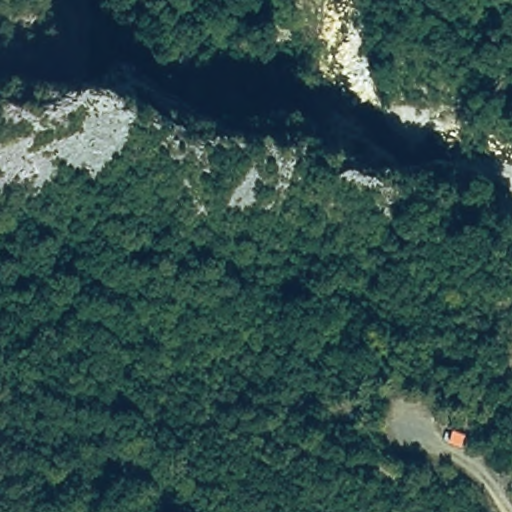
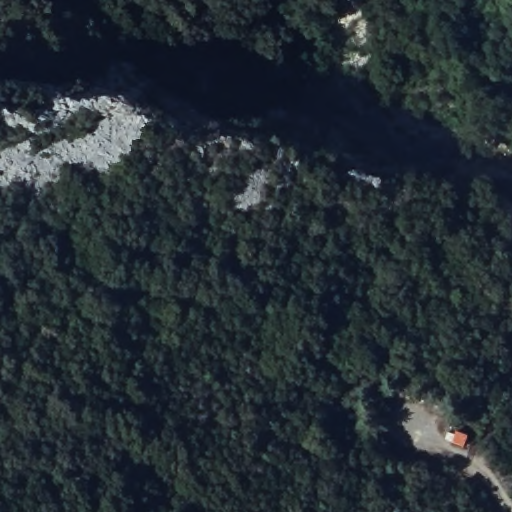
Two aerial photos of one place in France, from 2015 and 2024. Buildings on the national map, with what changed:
unchanged [(464,446),(442,437),(450,414),(474,421),(464,446)]

